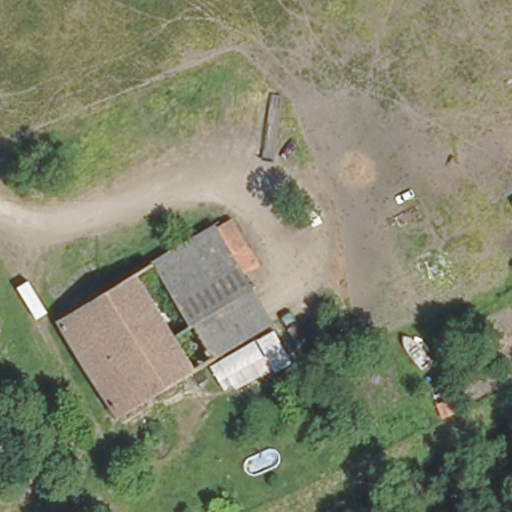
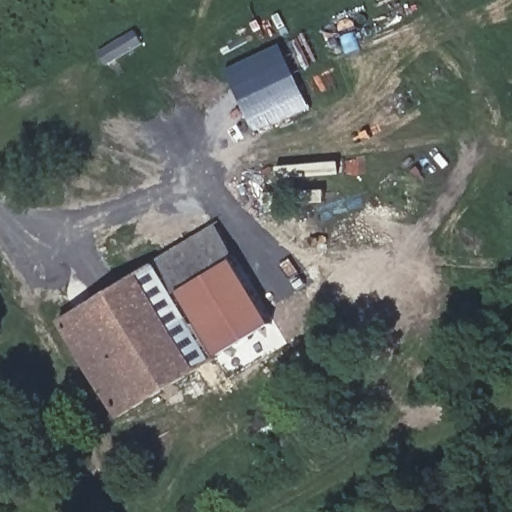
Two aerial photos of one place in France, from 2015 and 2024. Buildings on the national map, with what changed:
new [(280,44),(310,107),(255,131),(227,67),(280,44)]
unchanged [(273,326),(121,417),(58,319),(214,225),(273,326)]

